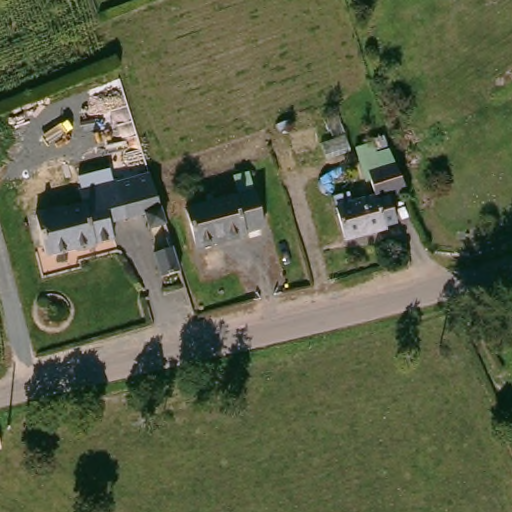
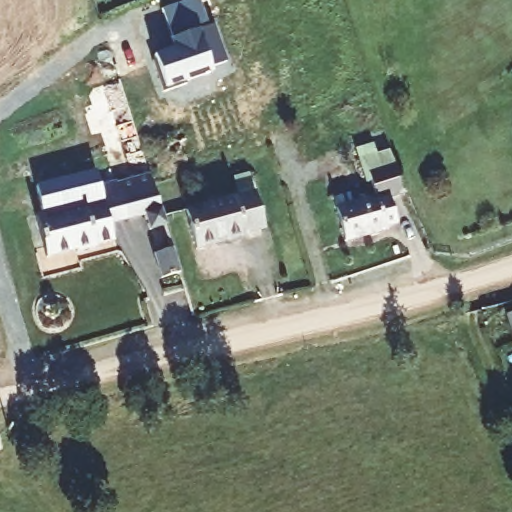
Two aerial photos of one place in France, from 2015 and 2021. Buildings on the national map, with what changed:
new [(180,59),(164,10),(193,0),(201,0),(210,28),(215,26),(228,63),(212,68),(213,73),(187,82),(189,90),(166,98),(155,67),(180,59)]
unchanged [(386,200),(393,220),(396,231),(386,235),(345,244),(334,202),(351,199),(354,208),(374,202),(367,180),(394,172),(405,196),(386,200)]
unchanged [(84,252),(86,258),(64,264),(61,258),(34,267),(20,228),(69,211),(65,199),(107,185),(141,173),(153,211),(159,230),(141,235),(136,220),(121,224),(101,230),(106,244),(101,248),(84,252)]
unchanged [(248,197),(259,233),(240,237),(242,241),(194,252),(184,213),(248,197)]
unchanged [(162,282),(154,258),(173,252),(179,271),(181,276),(162,282)]

